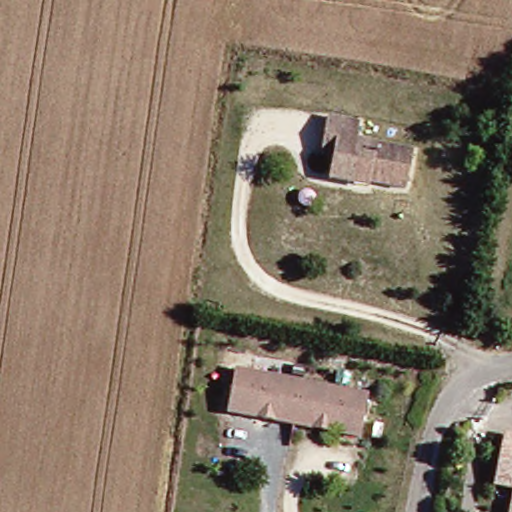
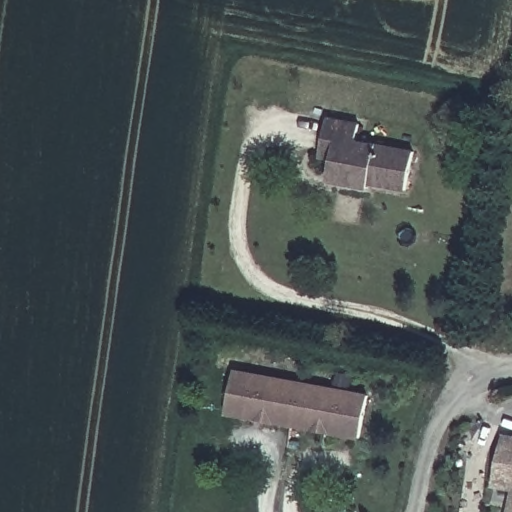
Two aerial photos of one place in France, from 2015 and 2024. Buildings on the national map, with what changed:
unchanged [(336,173),(338,156),(326,155),(330,135),(332,118),(363,123),(360,139),(418,150),(413,187),(377,181),(376,186),(335,179),(336,173)]
unchanged [(358,398),(351,440),(220,415),(227,373),(358,398)]
unchanged [(496,488),(504,440),(512,441),(512,491),(496,488)]
unchanged [(512,506),(512,512),(511,512),(512,506)]

